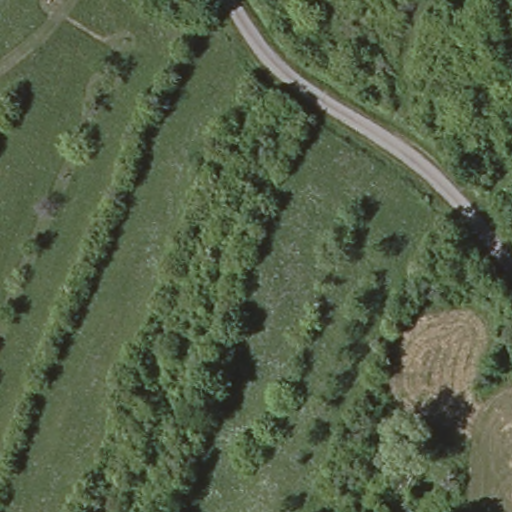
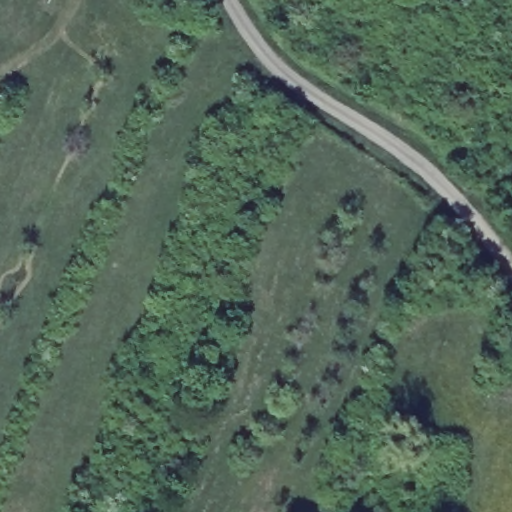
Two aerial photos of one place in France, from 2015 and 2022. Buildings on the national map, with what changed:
[]

